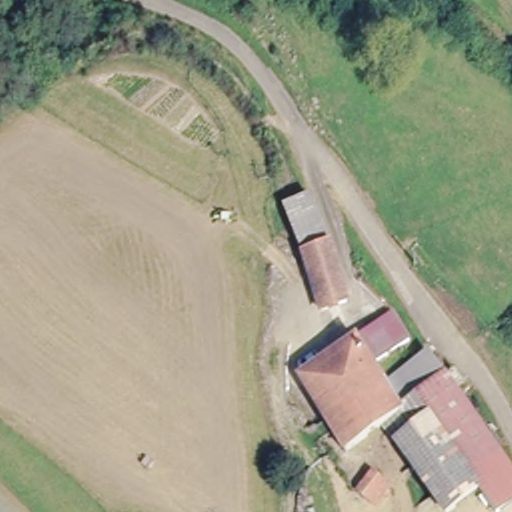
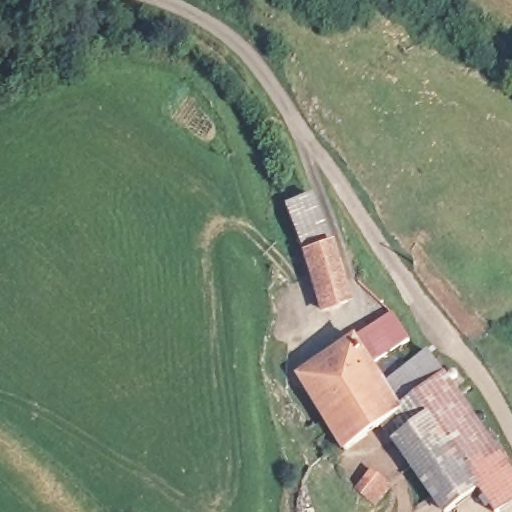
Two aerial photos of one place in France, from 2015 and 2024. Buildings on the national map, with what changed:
unchanged [(323,310),(301,255),(299,250),(288,226),(279,204),(284,202),(297,199),(304,195),(323,239),(347,300),(323,310)]
unchanged [(512,506),(503,512),(483,512),(471,496),(449,512),(437,512),(425,495),(418,485),(376,425),(341,449),(295,380),(370,327),(389,315),(405,340),(391,350),(367,366),(378,383),(405,363),(420,355),(512,489),(512,506)]
unchanged [(378,468),(381,473),(391,486),(374,502),(359,485),(378,468)]

